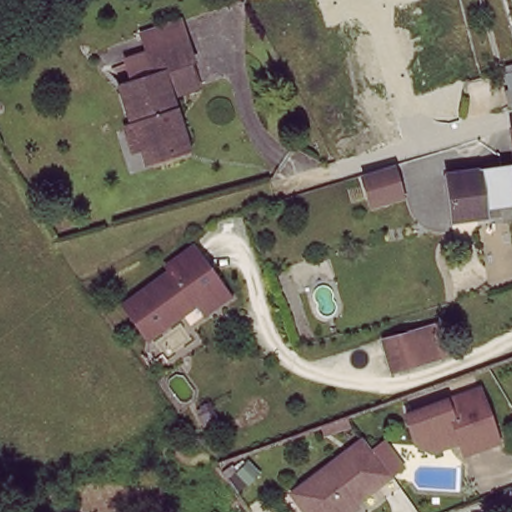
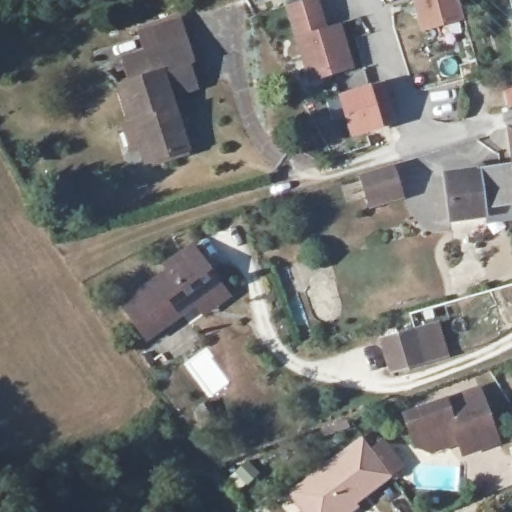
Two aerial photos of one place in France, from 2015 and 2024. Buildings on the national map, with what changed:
new [(306,0),(314,0),(323,30),(337,26),(350,67),(310,80),(286,6),(306,0)]
new [(465,19),(421,31),(413,0),(459,0),(465,19)]
unchanged [(125,121),(133,118),(121,81),(131,79),(124,56),(147,49),(187,35),(195,58),(189,60),(197,85),(172,92),(190,145),(153,156),(146,137),(132,142),(125,121)]
unchanged [(507,90),(503,73),(512,71),(512,89),(507,90)]
new [(383,80),(392,109),(375,114),(379,126),(350,135),(338,94),(383,80)]
unchanged [(509,130),(512,129),(512,152),(512,149),(509,130)]
unchanged [(486,215),(454,220),(445,177),(512,159),(512,200),(484,206),(486,215)]
unchanged [(376,169),(391,165),(400,196),(369,205),(360,174),(376,169)]
unchanged [(203,313),(195,302),(147,337),(122,305),(168,270),(165,265),(192,246),(219,285),(227,295),(203,313)]
unchanged [(385,335),(418,325),(431,322),(440,356),(427,360),(395,369),(385,335)]
unchanged [(429,446),(415,440),(405,410),(479,383),(498,436),(463,448),(459,436),(448,440),(429,446)]
unchanged [(360,442),(369,455),(379,447),(388,460),(397,471),(386,479),(349,506),(351,510),(348,512),(298,512),(286,495),(360,442)]

